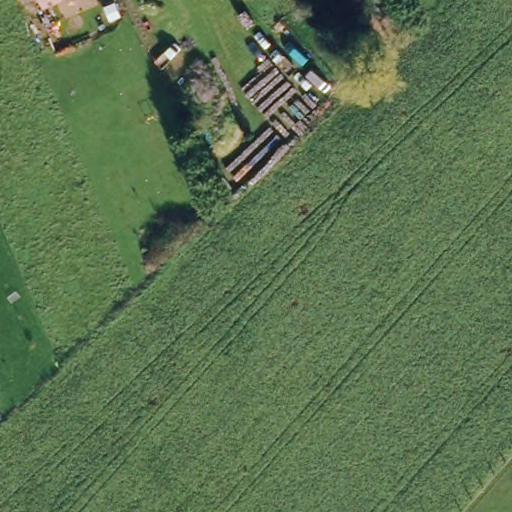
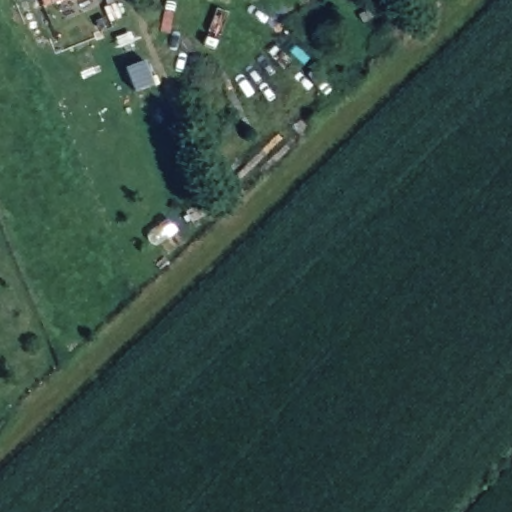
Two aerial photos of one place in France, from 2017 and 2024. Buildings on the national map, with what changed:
unchanged [(65,0),(44,10),(40,0),(65,0)]

